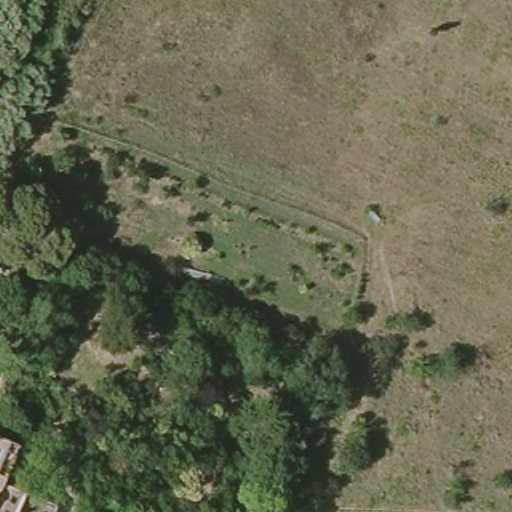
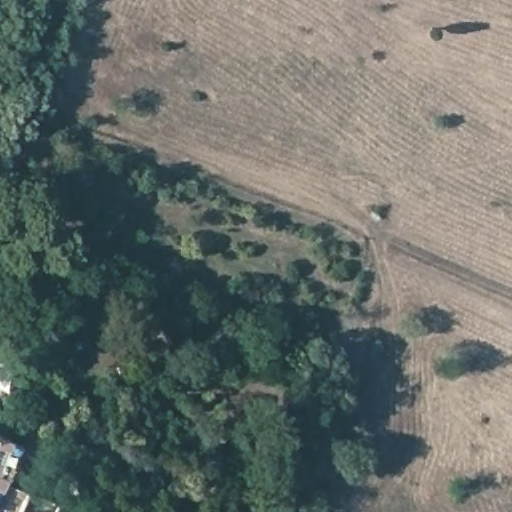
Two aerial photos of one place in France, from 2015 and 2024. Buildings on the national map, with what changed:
unchanged [(17,435),(2,471),(59,497),(53,512),(0,512),(0,428),(17,435)]

